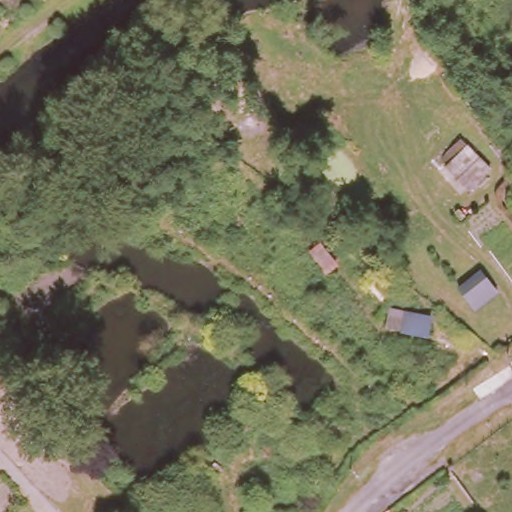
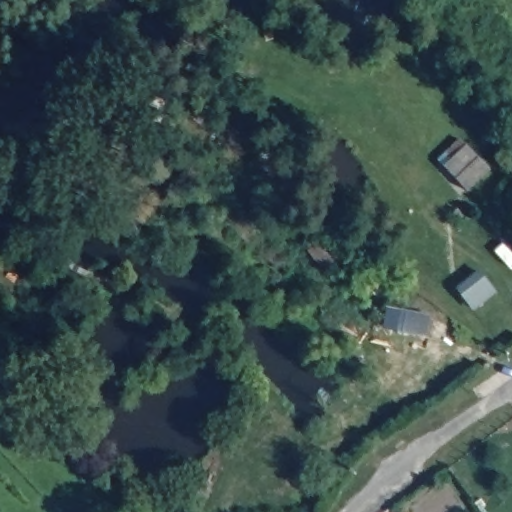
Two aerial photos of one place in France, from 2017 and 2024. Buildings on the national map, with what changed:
unchanged [(491,159),(502,171),(482,191),(470,178),(491,159)]
unchanged [(480,280),(488,289),(467,306),(460,297),(480,280)]
unchanged [(272,296),(280,287),(302,303),(295,313),(272,296)]
unchanged [(362,314),(356,327),(338,318),(345,305),(362,314)]
unchanged [(431,323),(427,340),(404,336),(407,319),(431,323)]

